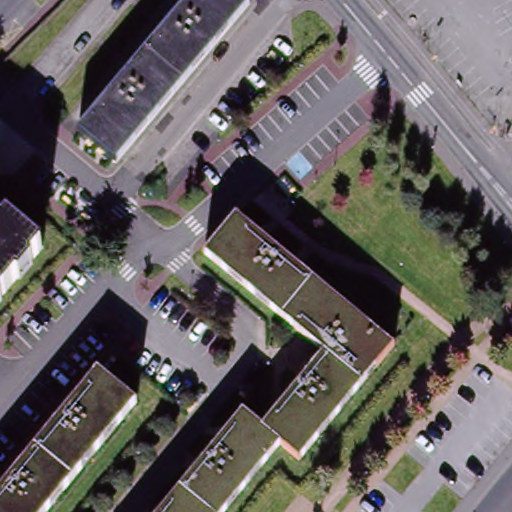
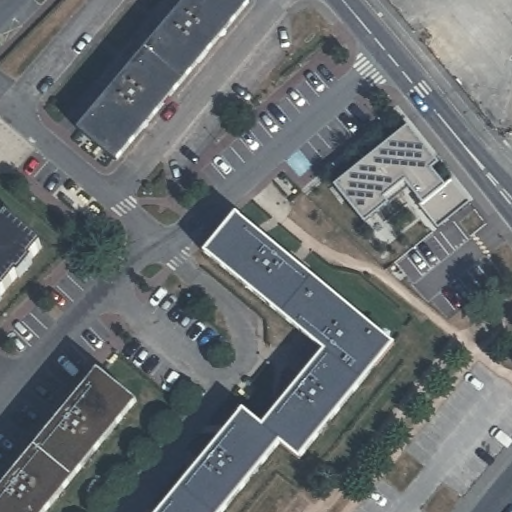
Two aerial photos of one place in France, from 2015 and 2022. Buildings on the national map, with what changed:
unchanged [(115,165),(77,133),(189,0),(243,0),(250,5),(115,165)]
new [(399,122),(430,160),(423,165),(436,181),(443,175),(462,198),(460,199),(459,197),(442,211),(444,213),(429,225),(417,211),(420,209),(400,184),(355,221),(325,183),(399,122)]
unchanged [(0,218),(40,253),(0,300),(0,218)]
unchanged [(392,347),(300,460),(280,444),(261,430),(323,355),(272,313),(265,307),(204,257),(235,220),(235,219),(392,347)]
unchanged [(47,512),(0,512),(0,491),(96,375),(134,406),(47,512)]
unchanged [(224,512),(161,512),(173,498),(243,414),(261,430),(280,444),(224,512)]

